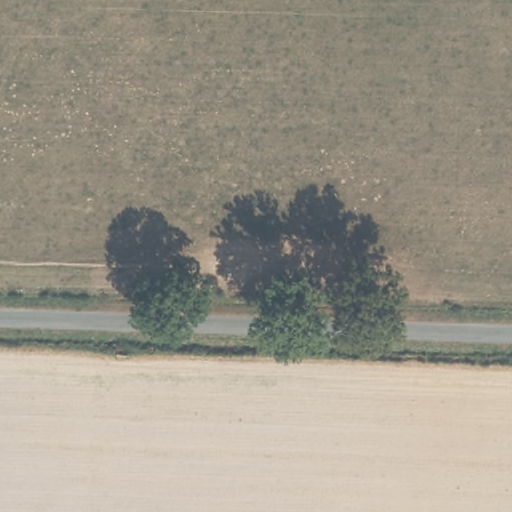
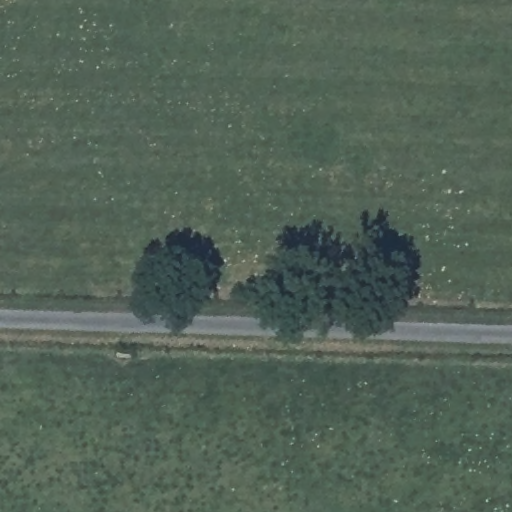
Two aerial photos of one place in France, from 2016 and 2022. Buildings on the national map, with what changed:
[]

